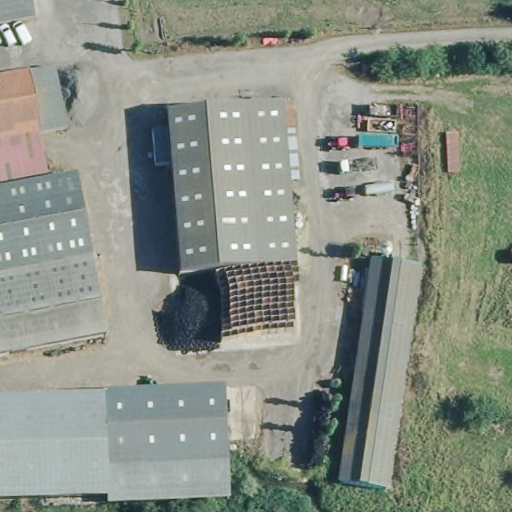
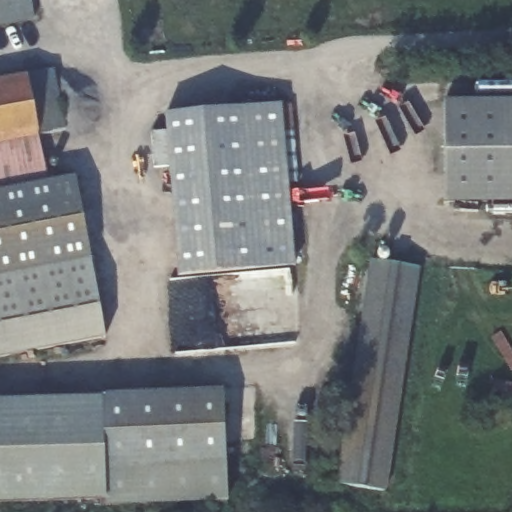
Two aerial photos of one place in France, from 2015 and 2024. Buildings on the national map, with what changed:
unchanged [(34,18),(0,24),(0,0),(32,0),(34,18)]
unchanged [(24,75),(24,74),(53,68),(64,129),(38,133),(24,75)]
unchanged [(24,75),(38,133),(0,141),(0,80),(24,75)]
unchanged [(290,200),(296,264),(179,275),(175,225),(165,112),(250,105),(281,102),(281,104),(284,132),(290,200)]
demolished [(291,103),(294,131),(284,132),(281,104),(291,103)]
new [(512,204),(448,204),(449,107),(512,106),(512,204)]
unchanged [(38,133),(48,180),(25,184),(0,189),(0,141),(38,133)]
unchanged [(76,175),(89,244),(94,268),(103,317),(106,336),(20,353),(0,357),(0,189),(25,184),(48,180),(76,175)]
unchanged [(408,332),(400,382),(386,469),(383,491),(336,484),(350,399),(359,347),(372,261),(418,268),(408,332)]
unchanged [(174,392),(224,389),(226,463),(181,466),(126,468),(105,469),(101,395),(115,395),(174,392)]
unchanged [(106,501),(106,495),(0,499),(0,399),(101,395),(105,469),(126,468),(181,466),(226,463),(227,498),(131,501),(106,501)]

